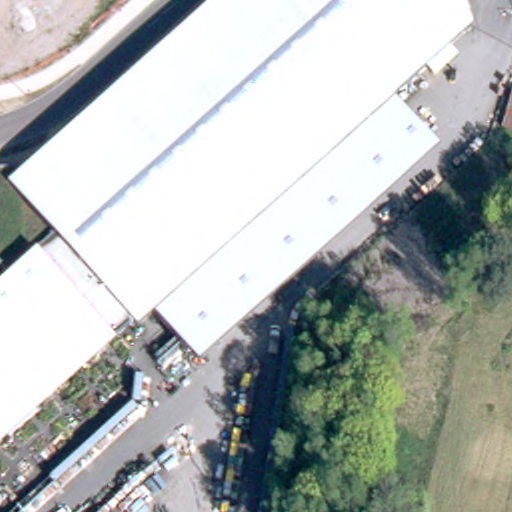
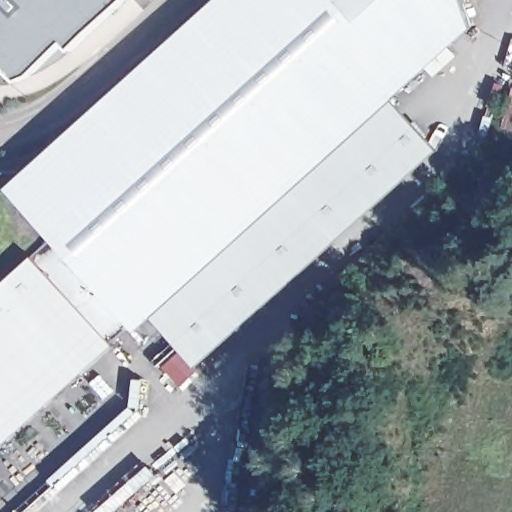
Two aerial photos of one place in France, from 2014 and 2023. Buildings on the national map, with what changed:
new [(0,0),(126,0),(68,52),(60,46),(15,85),(0,70),(0,0)]
unchanged [(210,0),(463,0),(471,29),(394,101),(440,147),(197,367),(152,317),(0,454),(0,178),(11,179),(210,0)]
unchanged [(483,199),(501,205),(488,246),(470,241),(483,199)]

